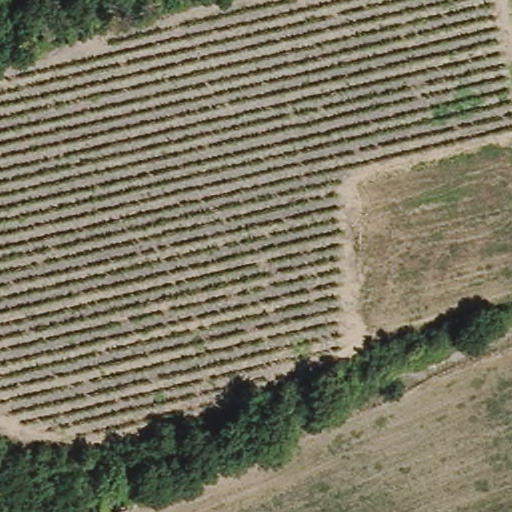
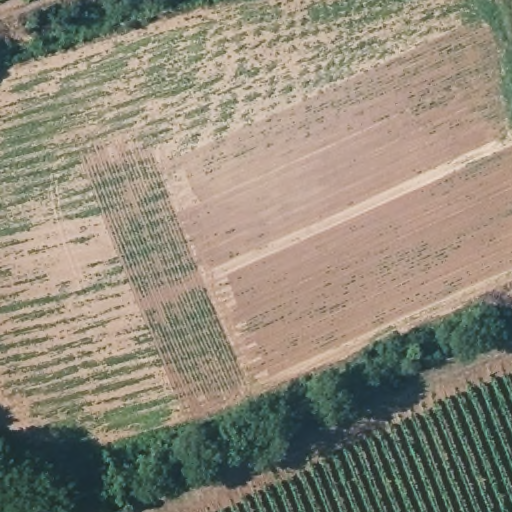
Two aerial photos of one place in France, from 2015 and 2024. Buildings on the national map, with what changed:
unchanged [(96,501),(117,491),(126,501),(105,511),(96,501)]

